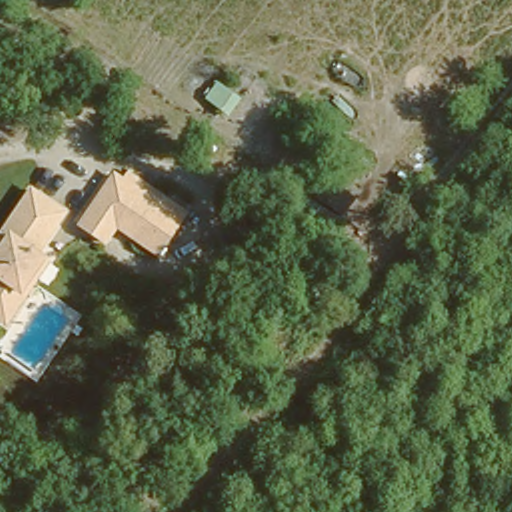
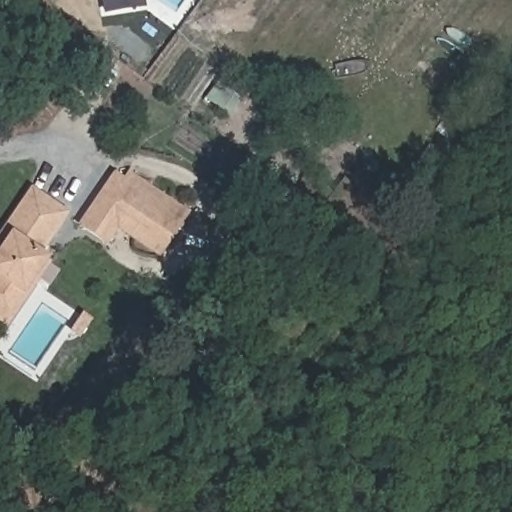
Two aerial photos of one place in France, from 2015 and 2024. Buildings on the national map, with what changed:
new [(101,14),(99,0),(142,0),(144,8),(101,14)]
unchanged [(120,221),(109,238),(84,222),(115,171),(124,177),(129,168),(189,205),(184,213),(163,248),(120,221)]
unchanged [(0,236),(6,225),(34,184),(67,206),(40,246),(48,251),(38,267),(43,269),(29,291),(12,318),(0,310),(0,236)]

